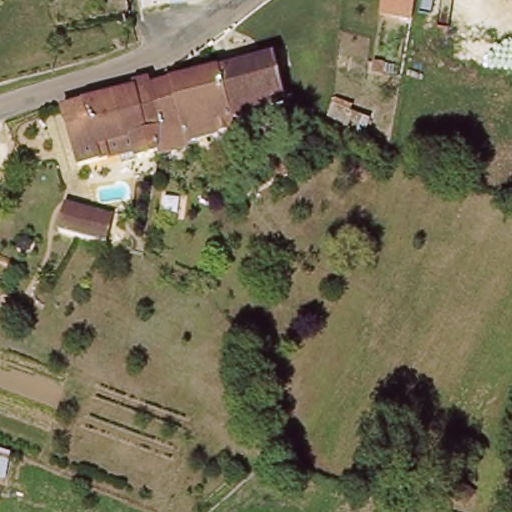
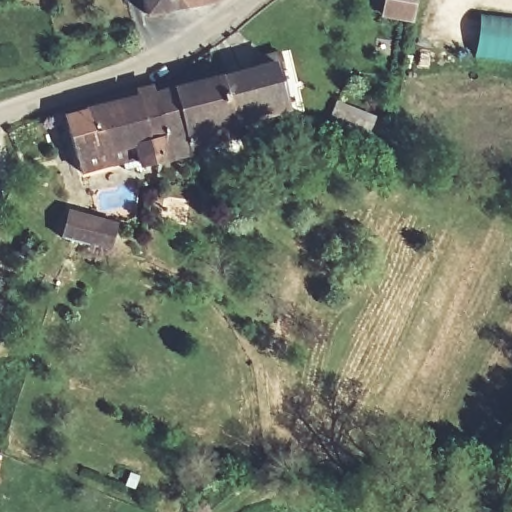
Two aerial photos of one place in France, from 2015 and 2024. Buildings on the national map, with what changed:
unchanged [(143,0),(202,0),(147,16),(143,0)]
unchanged [(411,22),(380,16),(384,0),(416,0),(411,22)]
new [(512,62),(474,58),(480,12),(512,16),(512,62)]
unchanged [(235,117),(219,72),(275,51),(289,97),(235,117)]
unchanged [(176,86),(178,91),(219,72),(235,117),(236,124),(196,137),(198,146),(168,155),(165,145),(155,92),(176,86)]
unchanged [(87,178),(80,162),(65,117),(87,109),(91,114),(155,92),(165,145),(159,147),(156,136),(138,141),(104,152),(111,171),(87,178)]
unchanged [(116,223),(108,252),(81,244),(63,237),(71,209),(88,214),(116,223)]
unchanged [(10,449),(10,483),(0,483),(0,448),(10,449)]
unchanged [(505,477),(493,501),(466,487),(478,465),(505,477)]

